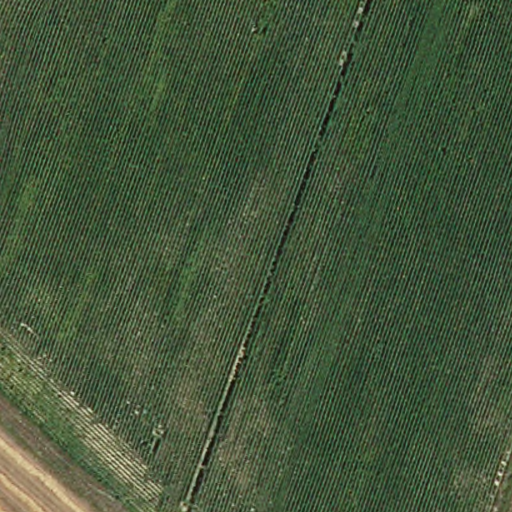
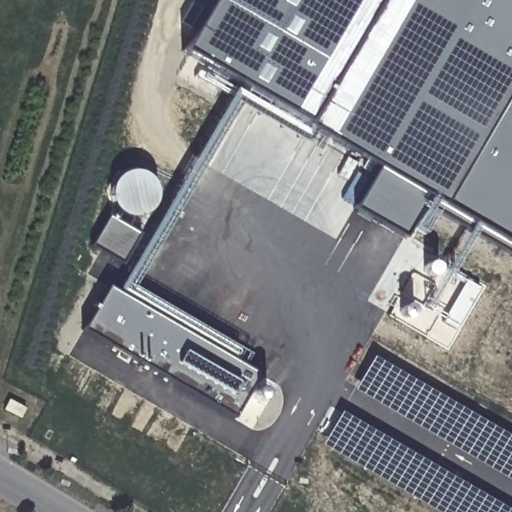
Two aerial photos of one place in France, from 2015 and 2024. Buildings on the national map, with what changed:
new [(431,196),(427,202),(406,237),(355,208),(378,165),(306,124),(185,50),(214,0),(512,0),(512,243),(431,196)]
new [(427,202),(431,196),(512,243),(512,251),(427,202)]
new [(94,245),(110,218),(140,235),(124,263),(94,245)]
new [(109,287),(260,375),(234,418),(85,328),(109,287)]

